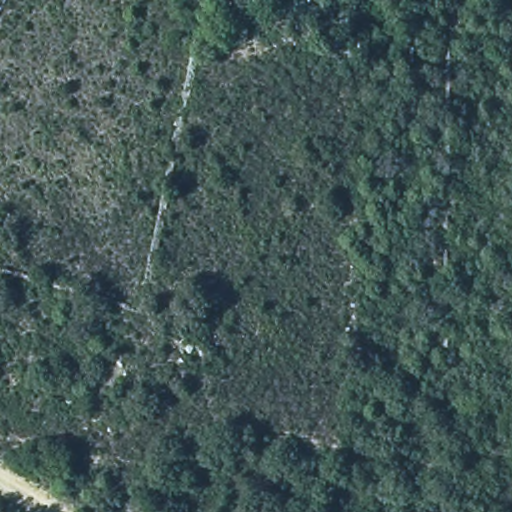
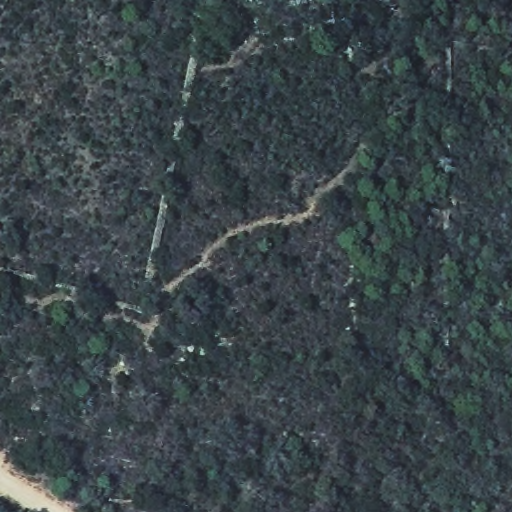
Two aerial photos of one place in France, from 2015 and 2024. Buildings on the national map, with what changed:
unchanged [(4,227),(5,233),(5,241),(0,244),(0,221),(4,227)]

